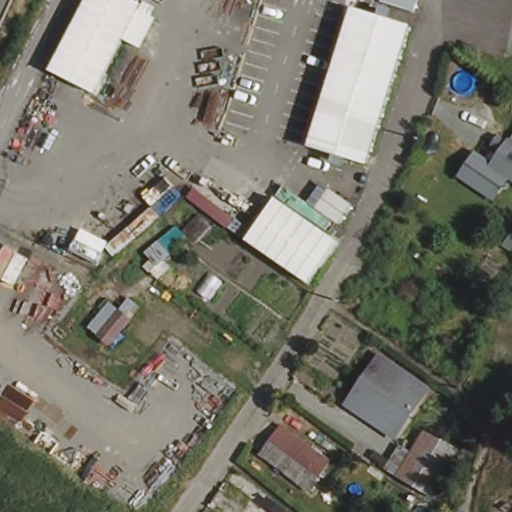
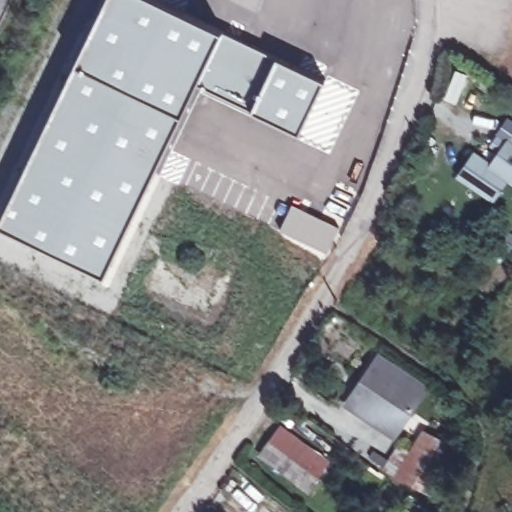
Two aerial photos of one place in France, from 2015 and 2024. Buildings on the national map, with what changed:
new [(278,56),(252,109),(200,82),(105,277),(55,254),(0,226),(0,218),(106,0),(160,0),(278,56)]
demolished [(97,96),(50,72),(87,0),(131,0),(142,6),(97,96)]
demolished [(370,166),(309,148),(352,8),(412,26),(370,166)]
new [(278,56),(325,78),(299,134),(252,109),(278,56)]
unchanged [(506,180),(492,200),(459,179),(473,158),(489,169),(511,138),(512,140),(512,185),(506,180)]
demolished [(309,284),(246,242),(276,198),(284,188),(334,222),(326,232),(339,242),(309,284)]
new [(292,203),(341,225),(327,252),(280,229),(292,203)]
demolished [(196,248),(190,242),(166,260),(172,269),(164,276),(146,252),(176,228),(179,226),(182,231),(201,213),(216,228),(196,248)]
demolished [(112,348),(87,329),(110,302),(121,310),(130,299),(142,308),(112,348)]
unchanged [(377,426),(382,420),(365,409),(361,415),(346,406),(379,358),(425,389),(392,437),(377,426)]
unchanged [(283,419),(334,461),(312,497),(255,453),(283,419)]
unchanged [(394,480),(405,464),(418,445),(425,436),(431,440),(436,432),(460,448),(454,456),(423,499),(394,480)]

